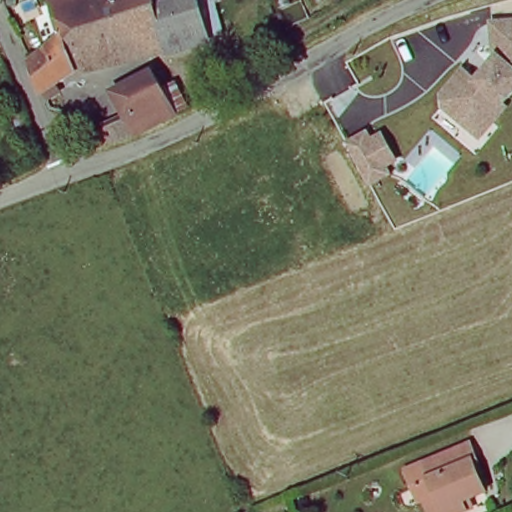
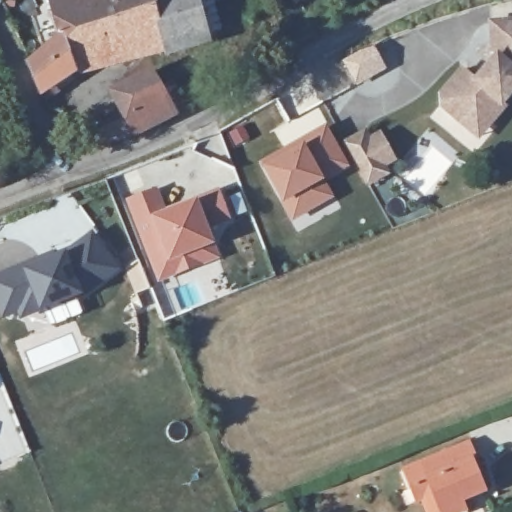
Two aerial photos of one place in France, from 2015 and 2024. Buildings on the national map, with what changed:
unchanged [(44,92),(32,65),(65,32),(56,0),(202,0),(209,37),(165,50),(163,44),(90,61),(75,65),(76,70),(56,84),(62,91),(48,101),(44,92)]
unchanged [(214,0),(217,0),(214,1),(214,0)]
unchanged [(457,117),(441,103),(441,92),(462,67),(475,79),(496,55),(494,52),(492,22),(512,20),(512,89),(501,102),(504,105),(490,120),(477,135),(457,117)]
unchanged [(91,132),(118,120),(129,115),(115,93),(154,71),(182,111),(144,129),(125,136),(96,146),(91,132)]
new [(282,145),(274,130),(304,114),(306,118),(303,123),(307,131),(324,122),(350,166),(326,181),(335,197),(290,221),(256,161),(282,145)]
unchanged [(374,139),(385,133),(397,162),(386,168),(390,176),(370,187),(350,142),(369,131),(374,139)]
new [(158,187),(166,210),(197,199),(218,190),(231,222),(208,232),(214,246),(220,260),(158,283),(125,201),(158,187)]
new [(61,260),(70,256),(98,235),(123,269),(88,296),(86,293),(29,317),(26,311),(10,317),(0,292),(0,280),(47,260),(59,255),(61,260)]
unchanged [(469,450),(475,466),(479,476),(473,478),(480,496),(462,502),(466,512),(439,512),(421,467),(469,450)]

